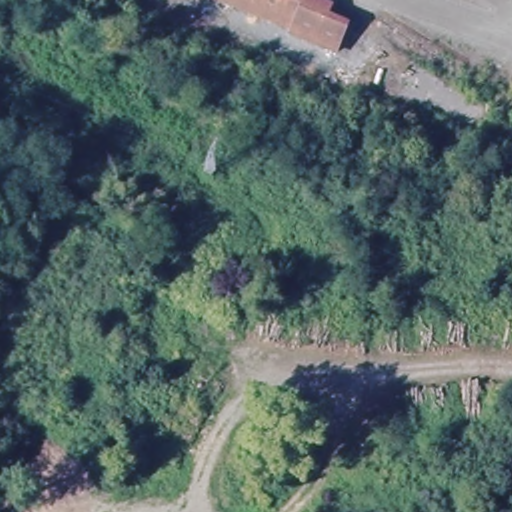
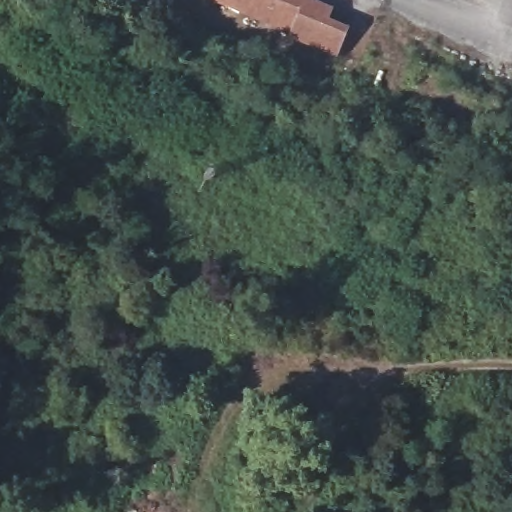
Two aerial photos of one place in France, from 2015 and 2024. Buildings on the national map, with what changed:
unchanged [(317,19),(337,27),(327,52),(284,34),(284,33),(207,0),(306,0),(322,7),(317,19)]

